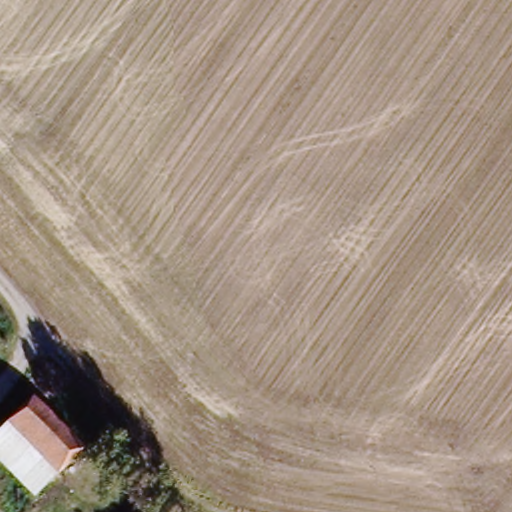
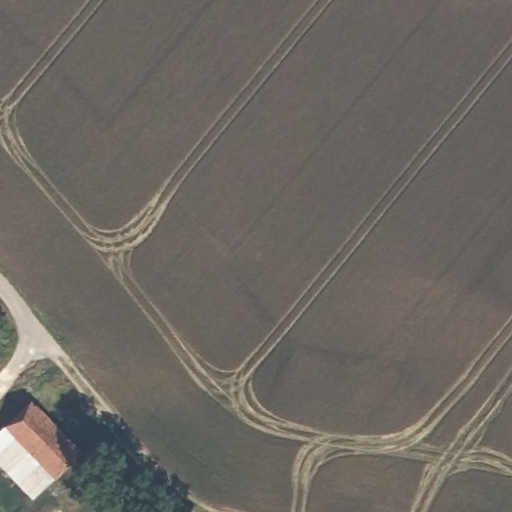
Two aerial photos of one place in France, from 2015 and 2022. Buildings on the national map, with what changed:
unchanged [(34,402),(89,456),(78,467),(75,464),(71,468),(73,471),(66,478),(11,425),(34,402)]
unchanged [(43,501),(0,459),(0,436),(11,425),(66,478),(43,501)]

